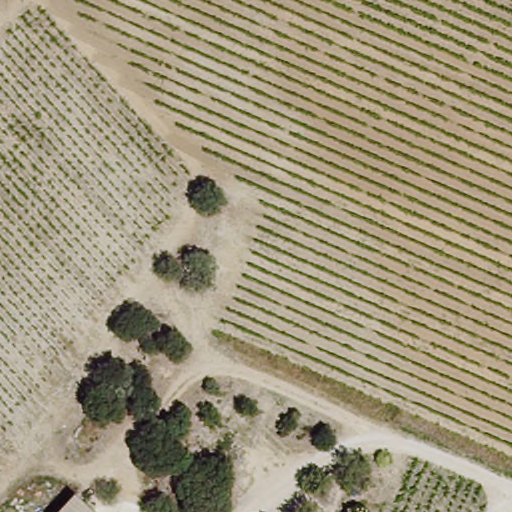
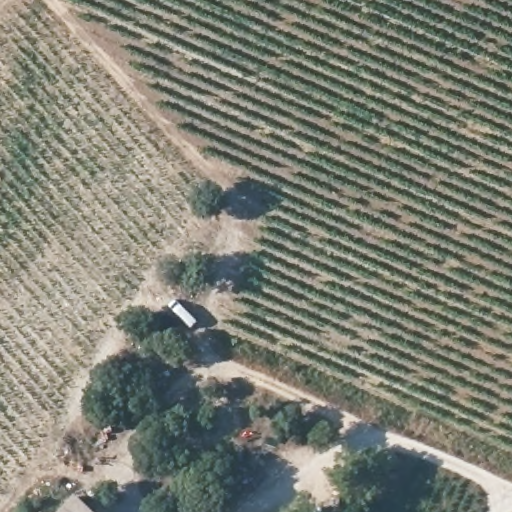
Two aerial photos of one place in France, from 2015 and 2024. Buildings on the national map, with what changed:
unchanged [(98,512),(71,512),(83,498),(98,512)]

